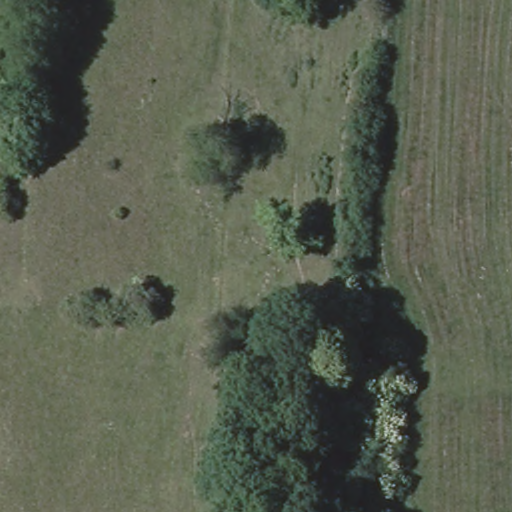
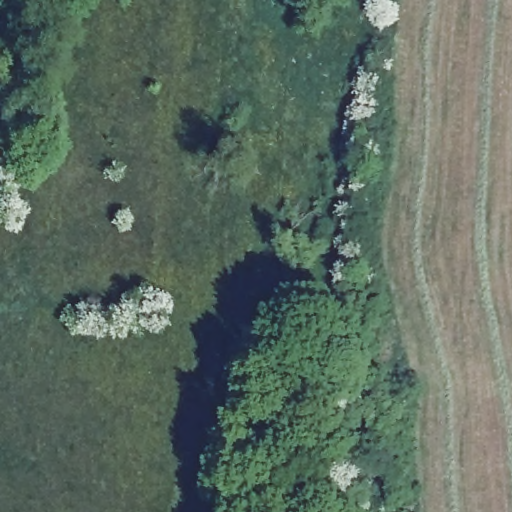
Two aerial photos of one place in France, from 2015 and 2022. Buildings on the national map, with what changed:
[]

